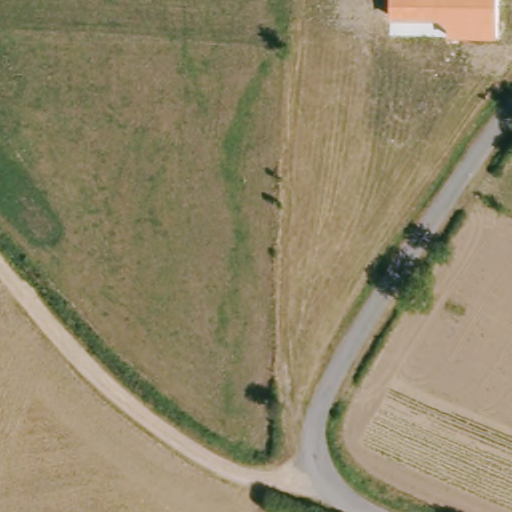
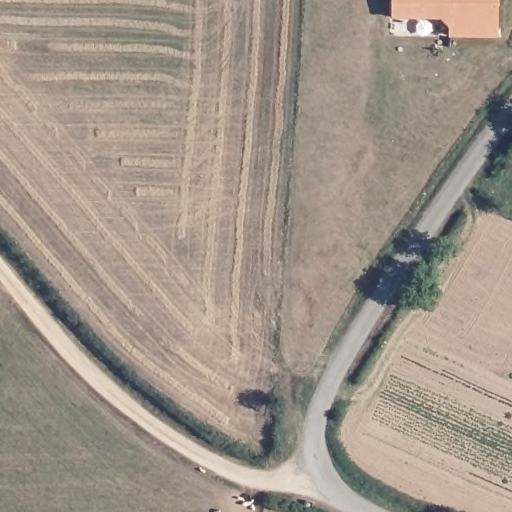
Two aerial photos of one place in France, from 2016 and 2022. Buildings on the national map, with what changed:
unchanged [(449,37),(449,27),(439,19),(392,19),(391,0),(498,0),(497,37),(449,37)]

